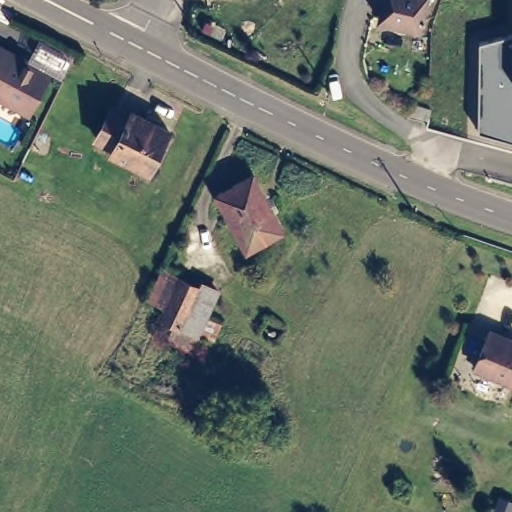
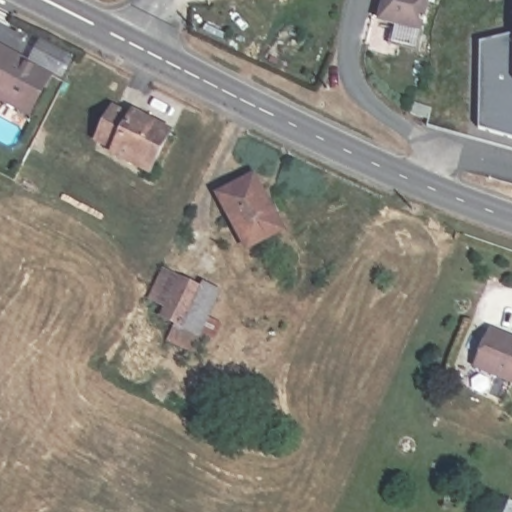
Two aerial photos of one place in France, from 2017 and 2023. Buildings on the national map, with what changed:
unchanged [(383,20),(386,0),(426,0),(420,28),(383,20)]
unchanged [(477,41),(512,29),(512,142),(477,128),(477,41)]
unchanged [(31,113),(0,96),(0,44),(54,69),(31,113)]
unchanged [(433,88),(423,88),(424,77),(435,77),(433,88)]
unchanged [(132,115),(137,108),(172,126),(152,167),(117,150),(119,143),(102,136),(115,106),(132,115)]
unchanged [(255,175),(282,231),(246,247),(220,191),(255,175)]
unchanged [(198,288),(203,286),(218,292),(200,336),(165,321),(182,280),(198,288)]
unchanged [(490,332),(493,323),(512,330),(512,375),(477,363),(490,332)]
unchanged [(512,512),(497,512),(503,497),(512,501),(512,512)]

